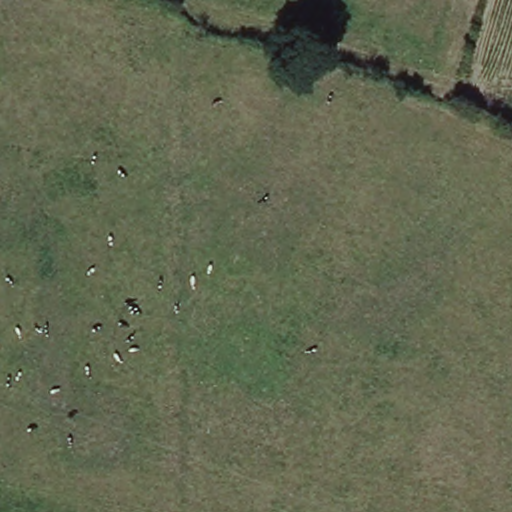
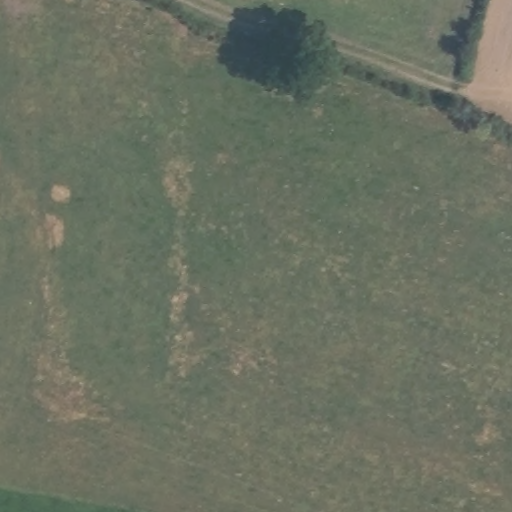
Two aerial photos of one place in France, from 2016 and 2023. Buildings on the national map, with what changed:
[]

